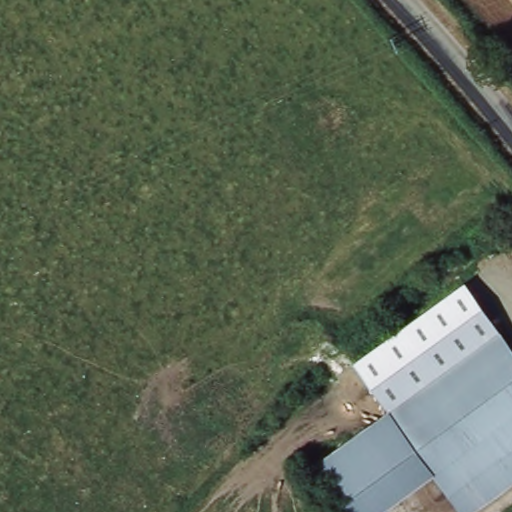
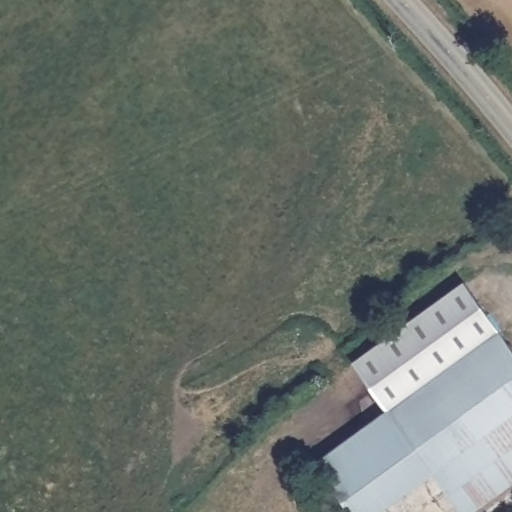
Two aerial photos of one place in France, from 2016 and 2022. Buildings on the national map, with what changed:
unchanged [(388,412),(353,361),(466,280),(502,329),(388,412)]
unchanged [(461,512),(431,470),(388,412),(502,329),(512,342),(512,485),(475,512),(461,512)]
unchanged [(374,512),(351,512),(312,460),(388,412),(431,470),(374,512)]

